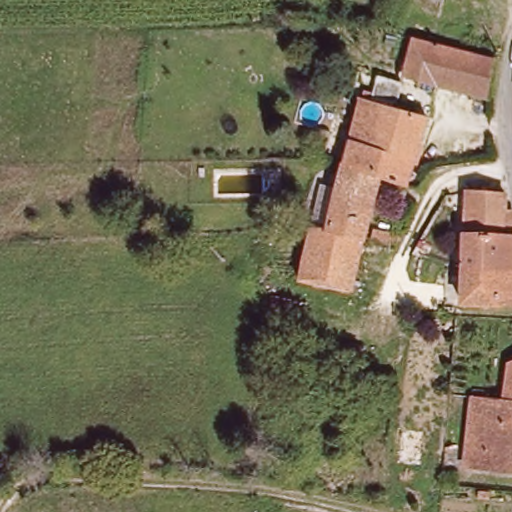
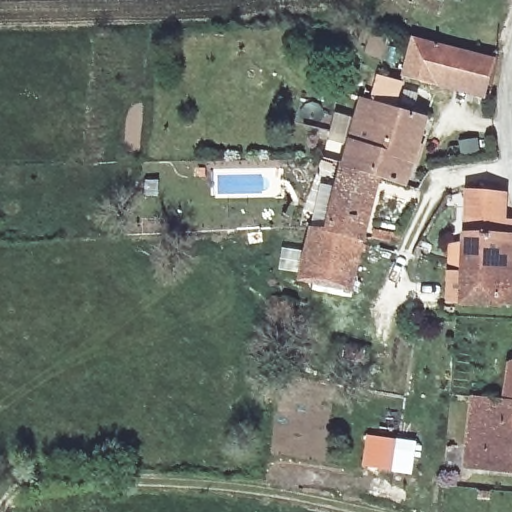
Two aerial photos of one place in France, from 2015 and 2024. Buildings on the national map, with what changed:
unchanged [(486,95),(446,87),(397,77),(403,38),(493,58),(486,95)]
unchanged [(342,166),(366,95),(427,116),(406,183),(405,185),(376,177),(342,166)]
unchanged [(320,232),(342,166),(376,177),(361,242),(320,232)]
unchanged [(462,266),(467,187),(503,191),(502,210),(512,211),(512,264),(512,269),(462,266)]
unchanged [(432,211),(444,216),(429,244),(416,238),(432,211)]
unchanged [(402,244),(376,238),(379,226),(406,233),(402,244)]
unchanged [(361,242),(350,291),(298,279),(308,230),(320,232),(361,242)]
unchanged [(512,269),(508,305),(458,301),(462,266),(512,269)]
unchanged [(506,377),(507,354),(512,353),(512,378),(506,377)]
unchanged [(503,405),(506,377),(512,378),(512,406),(503,405)]
unchanged [(464,467),(472,402),(503,405),(512,406),(512,473),(464,467)]
new [(412,473),(363,467),(367,435),(416,441),(412,473)]

